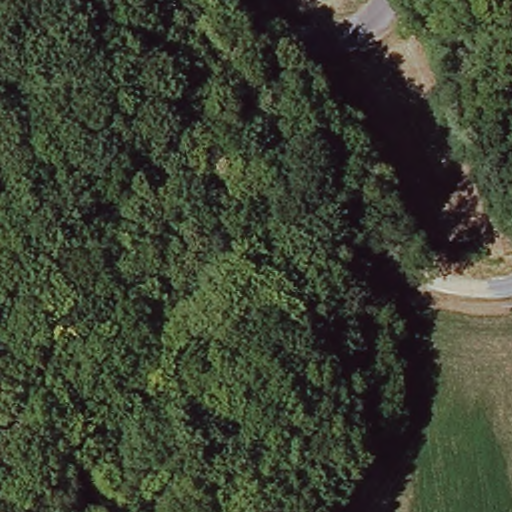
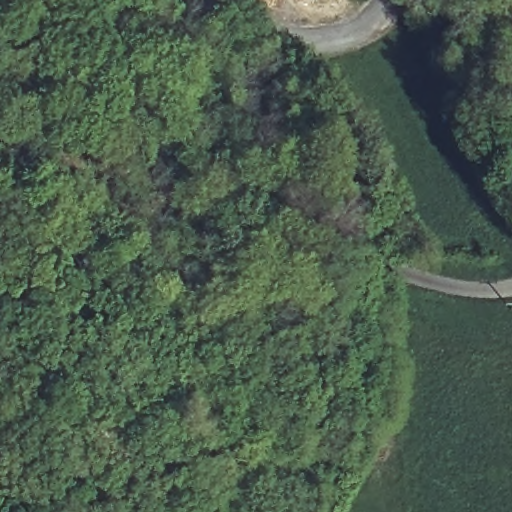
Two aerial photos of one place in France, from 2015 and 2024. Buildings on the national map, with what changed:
unchanged [(437,39),(417,20),(433,4),(453,23),(437,39)]

